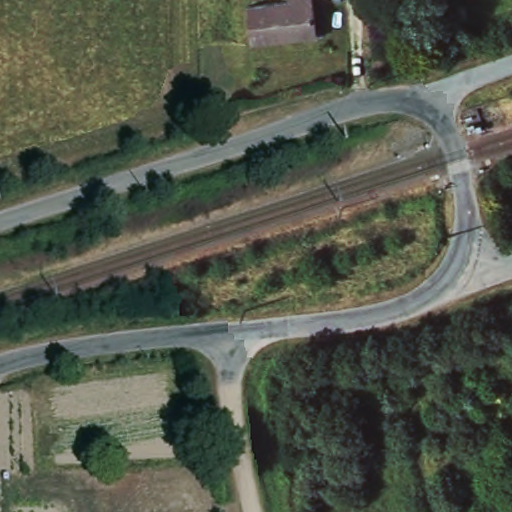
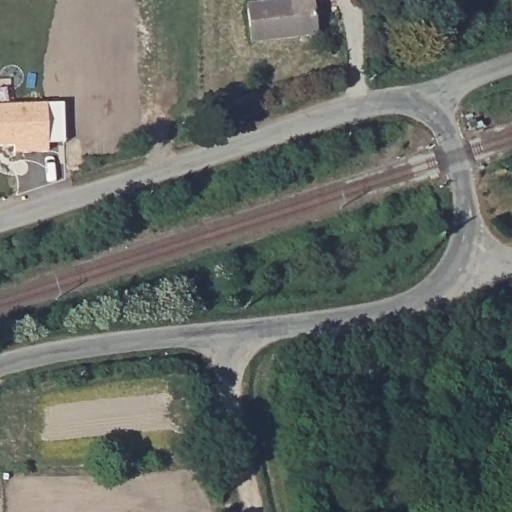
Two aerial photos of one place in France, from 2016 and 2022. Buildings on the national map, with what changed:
unchanged [(318,37),(255,43),(251,7),(291,1),(291,0),(314,0),(318,37)]
new [(46,105),(48,153),(14,154),(14,147),(0,147),(0,107),(46,105)]

